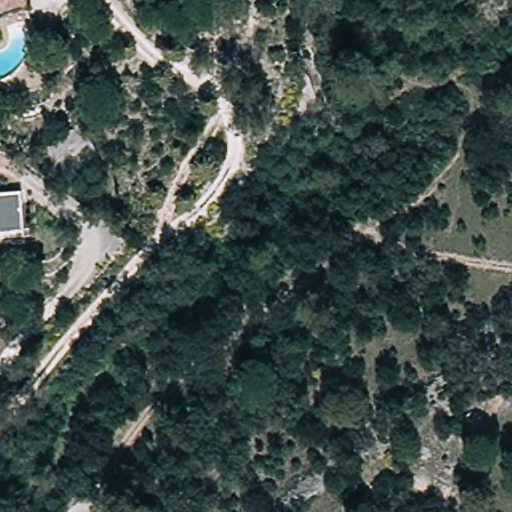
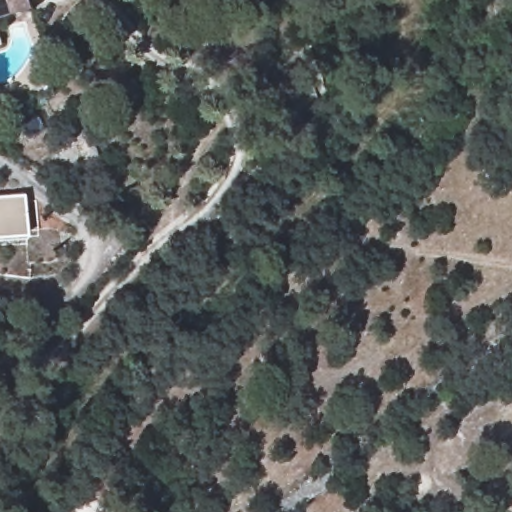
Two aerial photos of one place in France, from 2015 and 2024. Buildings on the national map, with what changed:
unchanged [(29,9),(0,18),(0,0),(26,0),(29,9)]
unchanged [(26,236),(0,238),(0,196),(22,195),(26,236)]

